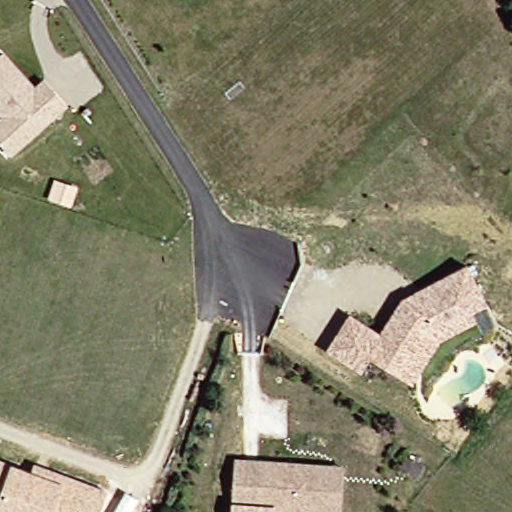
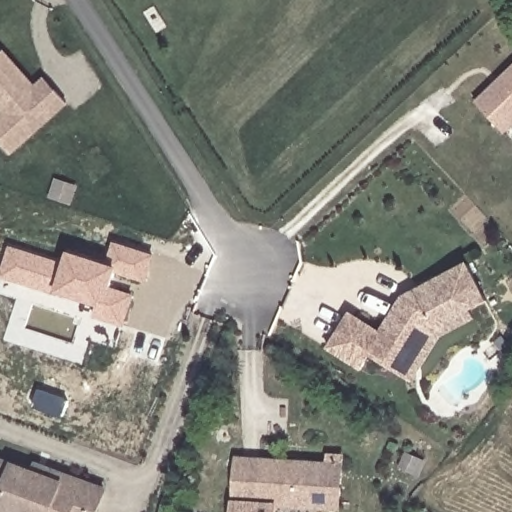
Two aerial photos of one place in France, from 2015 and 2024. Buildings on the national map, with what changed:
unchanged [(71,105),(14,156),(0,141),(0,54),(5,49),(35,84),(44,77),(71,105)]
new [(512,67),(512,126),(504,133),(475,104),(491,87),(500,79),(512,67)]
new [(10,245),(65,264),(69,252),(107,266),(115,245),(153,258),(144,282),(114,271),(107,289),(129,297),(119,325),(91,315),(95,303),(56,290),(56,292),(0,272),(10,245)]
unchanged [(487,303),(471,312),(476,321),(440,342),(413,380),(370,358),(362,370),(328,347),(350,312),(379,330),(402,296),(467,263),(487,303)]
unchanged [(34,458),(109,487),(101,512),(0,512),(0,456),(31,468),(34,458)]
unchanged [(334,512),(319,511),(228,504),(231,461),(322,467),(338,468),(334,512)]
new [(278,512),(228,512),(228,504),(278,508),(278,512)]

